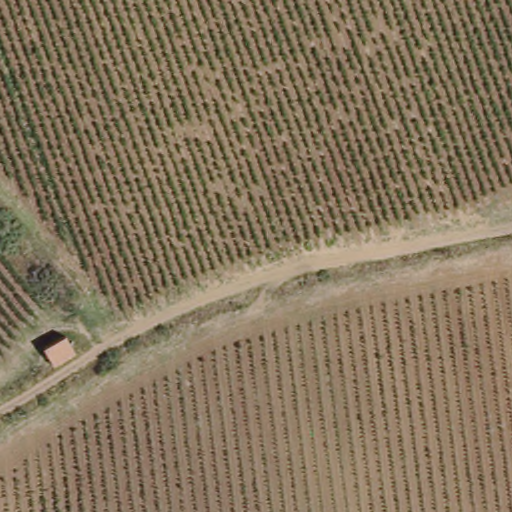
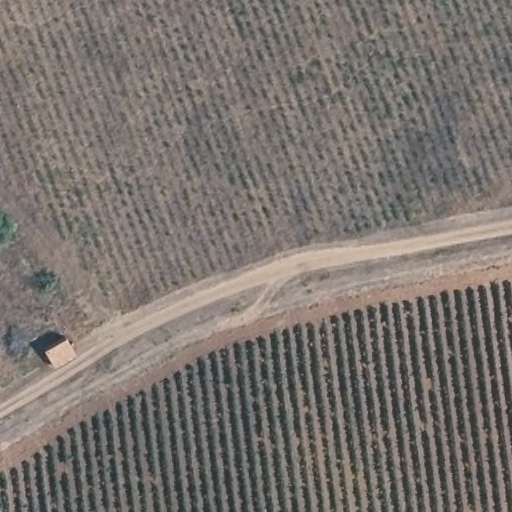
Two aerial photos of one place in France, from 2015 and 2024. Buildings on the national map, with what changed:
unchanged [(61,335),(74,355),(55,365),(43,346),(61,335)]

